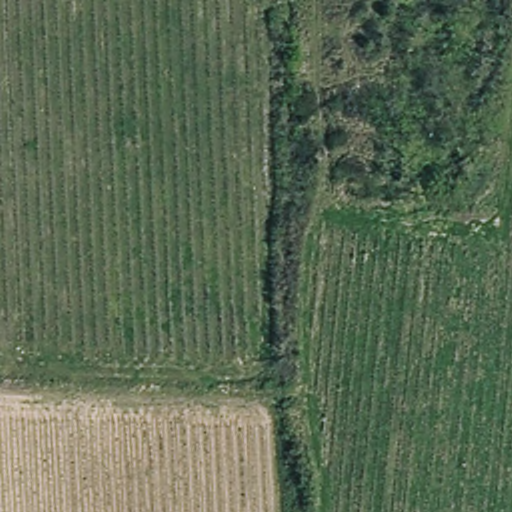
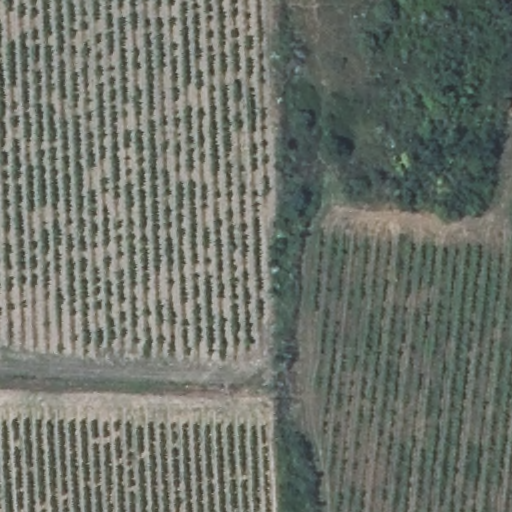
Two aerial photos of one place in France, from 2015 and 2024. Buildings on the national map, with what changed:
[]

